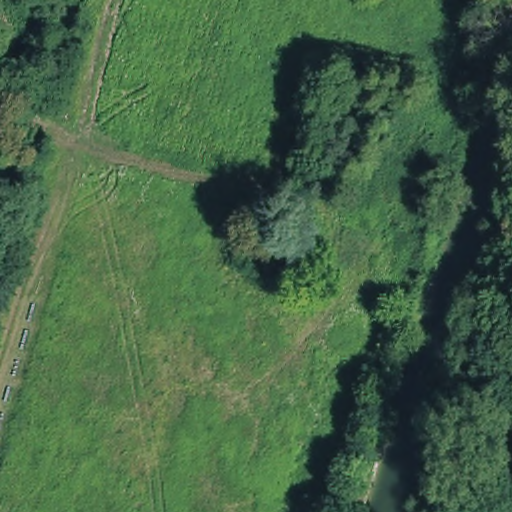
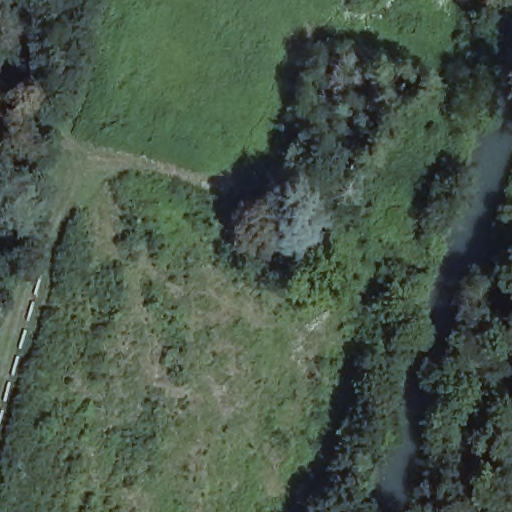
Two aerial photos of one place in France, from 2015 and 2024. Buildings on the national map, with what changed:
unchanged [(248,208),(279,222),(263,258),(232,245),(248,208)]

